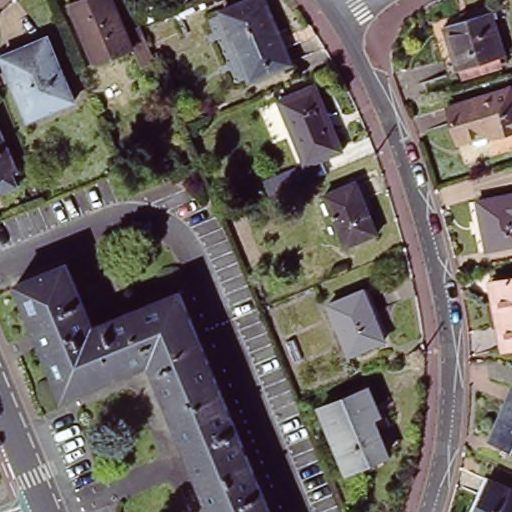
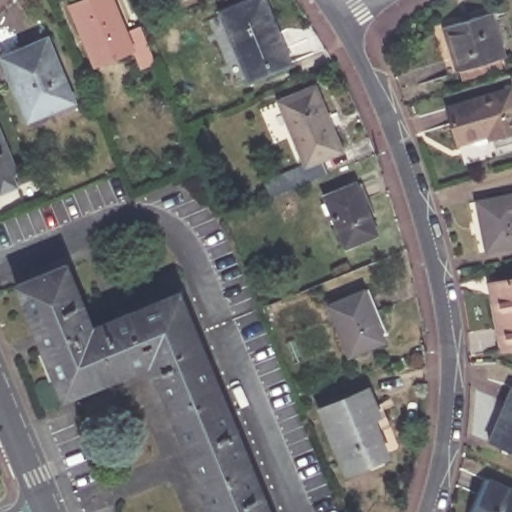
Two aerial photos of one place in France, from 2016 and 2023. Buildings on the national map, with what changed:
unchanged [(83,0),(111,0),(124,31),(139,26),(153,62),(138,69),(130,51),(93,66),(70,6),(83,0)]
unchanged [(251,0),(261,0),(289,67),(247,84),(218,13),(251,0)]
unchanged [(488,12),(502,57),(453,71),(441,26),(488,12)]
unchanged [(41,42),(67,107),(24,126),(0,66),(0,60),(41,42)]
unchanged [(277,95),(313,81),(340,144),(317,154),(323,167),(282,185),(277,171),(302,159),(277,95)]
unchanged [(512,97),(512,128),(487,136),(485,140),(476,142),(472,141),(470,137),(457,141),(447,108),(510,89),(512,97)]
unchanged [(12,169),(7,171),(12,184),(0,189),(0,139),(12,169)]
unchanged [(351,182),(372,234),(340,247),(319,195),(351,182)]
unchanged [(512,245),(481,252),(471,205),(512,196),(512,245)]
unchanged [(177,292),(268,512),(206,512),(147,366),(60,401),(14,285),(65,265),(91,327),(177,292)]
unchanged [(512,348),(508,348),(500,302),(494,303),(490,283),(512,279),(512,348)]
unchanged [(367,288),(387,340),(352,353),(332,302),(367,288)]
unchanged [(364,392),(375,421),(369,424),(382,460),(342,476),(317,411),(364,392)]
unchanged [(512,392),(512,454),(490,443),(512,392)]
unchanged [(512,512),(472,512),(485,482),(512,495),(512,512)]

